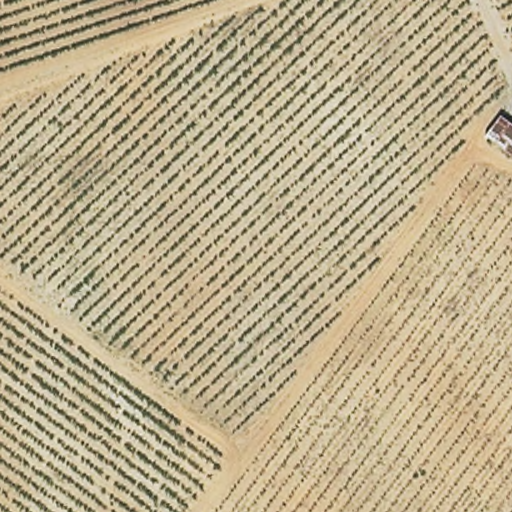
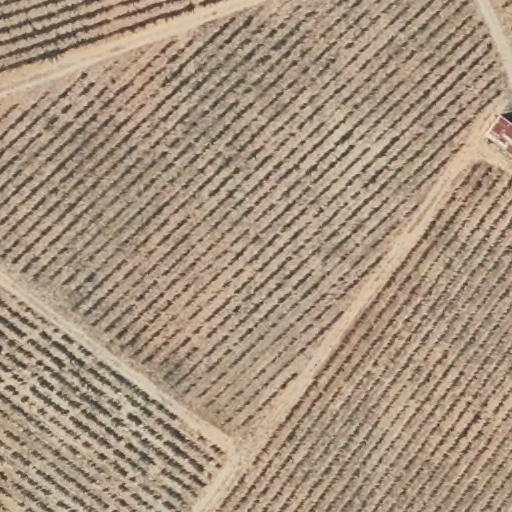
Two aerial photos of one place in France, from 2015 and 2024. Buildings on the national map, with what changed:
unchanged [(512,119),(512,150),(511,151),(484,129),(499,107),(512,119)]

